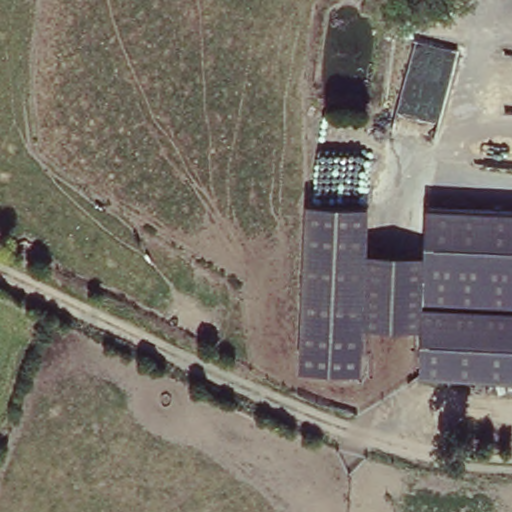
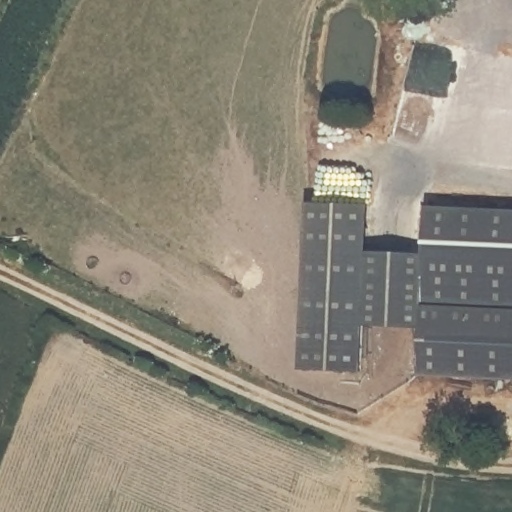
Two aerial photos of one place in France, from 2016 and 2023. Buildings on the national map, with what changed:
unchanged [(373,251),(425,252),(427,203),(512,208),(512,377),(418,372),(419,324),(368,322),(365,369),(302,366),(307,200),(373,202),(373,251)]

